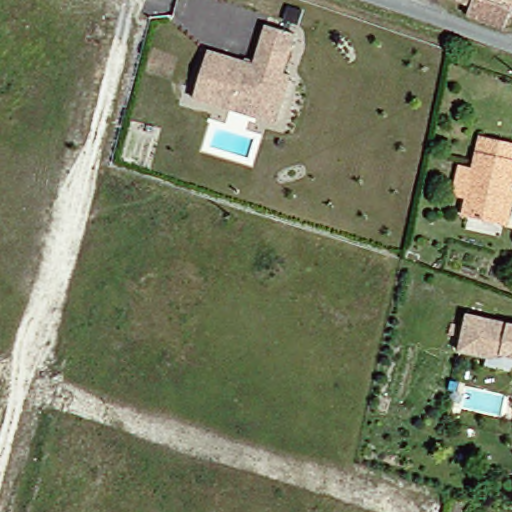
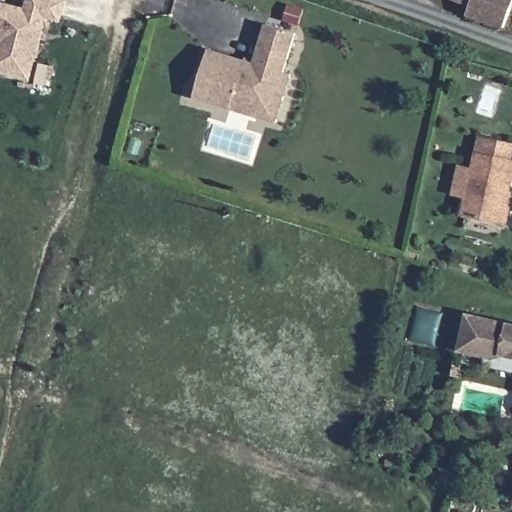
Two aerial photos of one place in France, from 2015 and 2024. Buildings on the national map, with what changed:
new [(25,12),(28,0),(53,0),(64,3),(59,22),(44,18),(27,80),(0,73),(0,5),(25,12)]
unchanged [(442,0),(512,0),(512,6),(504,29),(464,16),(467,8),(442,0)]
unchanged [(290,7),(286,20),(273,16),(276,3),(290,7)]
unchanged [(265,119),(219,105),(183,94),(197,46),(243,60),(253,21),(284,30),(271,68),(279,71),(265,119)]
unchanged [(478,141),(512,151),(512,154),(510,167),(512,168),(512,183),(500,230),(457,221),(461,203),(445,198),(452,171),(470,175),(478,141)]
unchanged [(488,365),(455,359),(462,313),(512,324),(512,365),(494,361),(488,365)]

